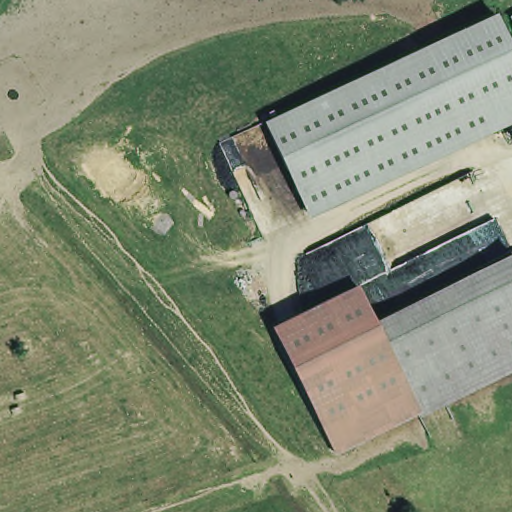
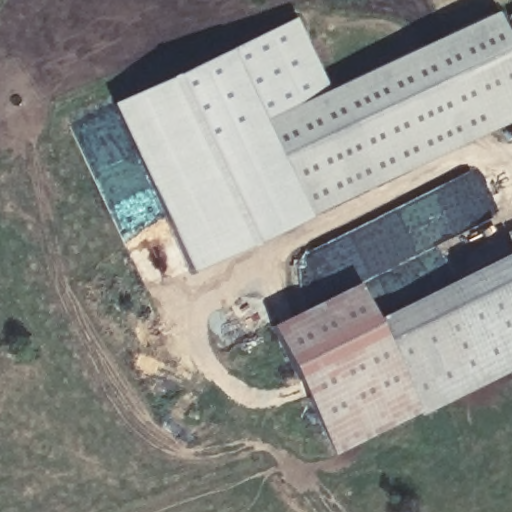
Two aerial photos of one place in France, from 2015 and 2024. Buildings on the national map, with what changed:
unchanged [(310,213),(265,119),(328,88),(495,12),(512,49),(512,91),(482,104),(493,129),(310,213)]
new [(265,119),(310,213),(195,273),(112,109),(300,22),(328,88),(265,119)]
unchanged [(512,91),(512,121),(493,129),(482,104),(512,91)]
unchanged [(418,412),(333,455),(414,408),(373,315),(510,250),(512,255),(512,370),(420,415),(418,412)]
unchanged [(414,408),(333,455),(269,321),(355,277),(373,315),(414,408)]

